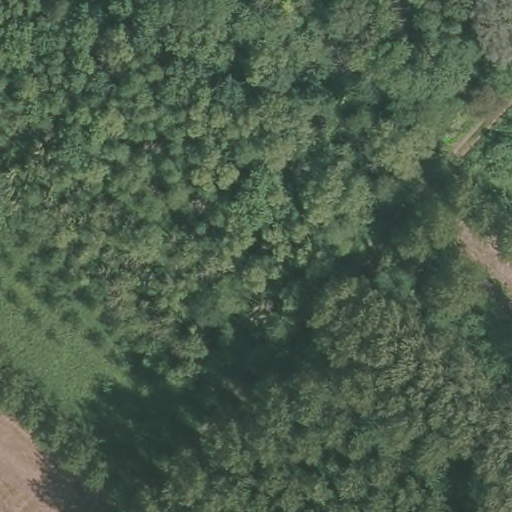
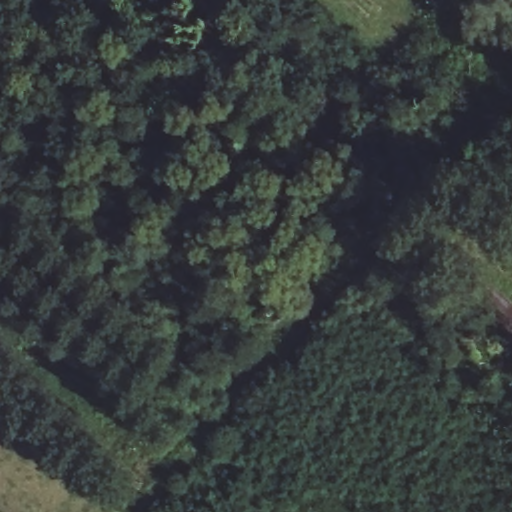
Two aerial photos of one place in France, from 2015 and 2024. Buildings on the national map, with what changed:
unchanged [(460,295),(478,269),(512,296),(512,337),(460,295)]

